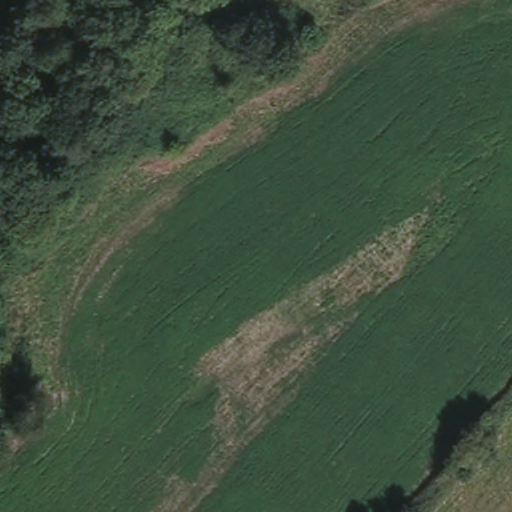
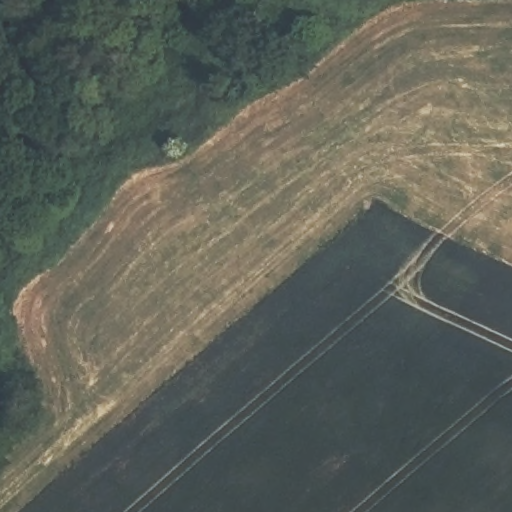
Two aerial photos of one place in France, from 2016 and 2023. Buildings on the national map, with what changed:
unchanged [(272,31),(258,44),(245,29),(260,17),(272,31)]

